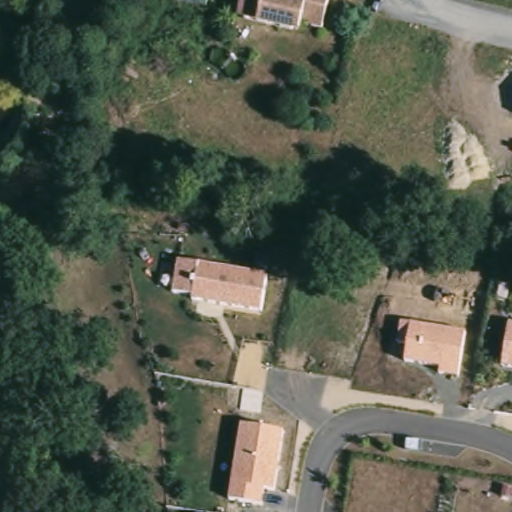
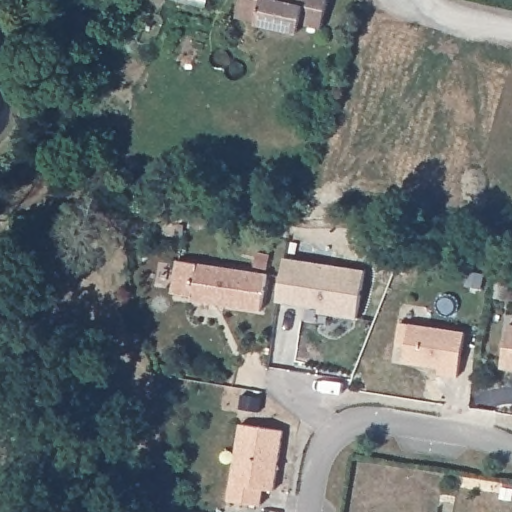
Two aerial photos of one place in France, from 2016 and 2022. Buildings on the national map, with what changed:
unchanged [(296,24),(287,29),(239,18),(233,9),(236,0),(324,0),(318,28),(296,24)]
new [(285,257),(365,269),(357,318),(320,312),(320,307),(278,300),(285,257)]
unchanged [(267,272),(262,310),(191,302),(192,296),(171,293),(176,259),(267,272)]
unchanged [(467,331),(459,377),(439,374),(440,369),(404,363),(407,347),(396,345),(400,321),(467,331)]
unchanged [(512,324),(512,369),(501,368),(508,323),(512,324)]
unchanged [(276,492),(264,490),(262,506),(227,501),(239,423),(285,429),(276,492)]

